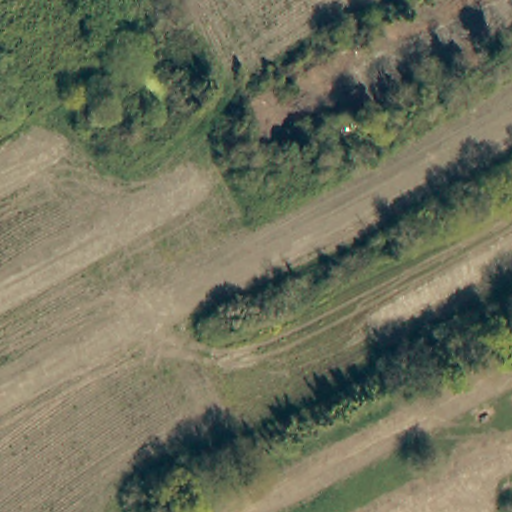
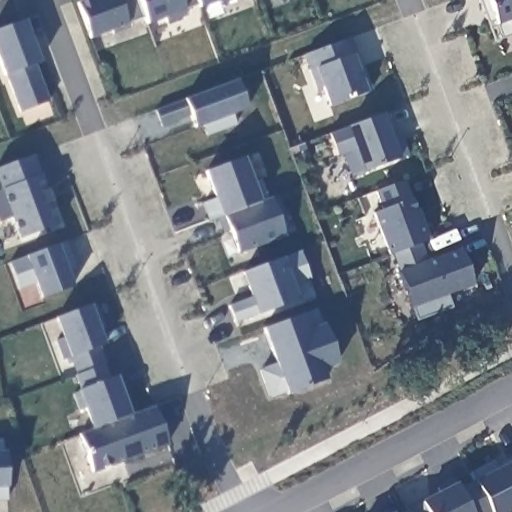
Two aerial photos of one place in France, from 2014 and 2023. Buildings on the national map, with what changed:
new [(197,0),(200,6),(146,24),(144,17),(128,26),(88,39),(74,3),(81,0),(197,0)]
new [(197,0),(217,0),(200,6),(197,0)]
new [(479,0),(512,0),(512,37),(493,42),(479,0)]
new [(19,111),(6,74),(0,58),(0,27),(25,17),(41,61),(34,64),(48,100),(19,111)]
new [(354,55),(367,92),(330,106),(322,86),(314,88),(303,53),(349,37),(354,55)]
new [(232,115),(235,124),(205,133),(202,124),(195,126),(191,116),(162,125),(157,107),(187,98),(237,78),(248,107),(232,115)]
new [(345,155),(340,156),(330,132),(347,125),(386,111),(403,157),(365,171),(354,174),(345,155)]
demolished [(313,122),(325,146),(281,168),(268,144),(313,122)]
new [(33,152),(59,222),(20,236),(12,217),(0,221),(0,187),(0,166),(33,152)]
new [(244,156),(254,180),(259,178),(266,195),(271,194),(286,236),(237,252),(230,229),(222,232),(217,217),(208,220),(202,202),(214,199),(205,172),(244,156)]
new [(390,254),(374,212),(384,208),(377,189),(405,179),(419,218),(423,217),(431,239),(390,254)]
new [(27,255),(57,243),(67,240),(77,267),(69,271),(74,286),(43,298),(37,282),(20,288),(11,262),(27,255)]
new [(420,242),(427,260),(460,247),(473,284),(449,293),(453,306),(417,320),(399,270),(401,270),(394,252),(420,242)]
new [(311,278),(293,285),(299,300),(257,315),(237,322),(229,306),(251,297),(241,272),(282,259),(300,251),(311,278)]
new [(99,346),(111,379),(117,375),(131,413),(153,403),(168,444),(92,472),(77,432),(91,428),(85,408),(80,409),(75,393),(80,390),(73,375),(77,373),(72,362),(66,364),(58,337),(63,336),(57,317),(91,304),(105,342),(99,346)]
new [(315,308),(321,325),(324,323),(337,361),(321,367),(325,379),(288,392),(286,389),(270,395),(260,369),(277,363),(263,327),(315,308)]
new [(8,487),(8,499),(0,500),(0,450),(5,450),(8,487)]
new [(476,484),(472,480),(512,459),(512,509),(506,512),(491,512),(476,484)]
new [(442,495),(439,488),(455,480),(461,492),(476,484),(490,512),(419,512),(417,507),(442,495)]
new [(407,507),(409,512),(397,512),(407,507)]

